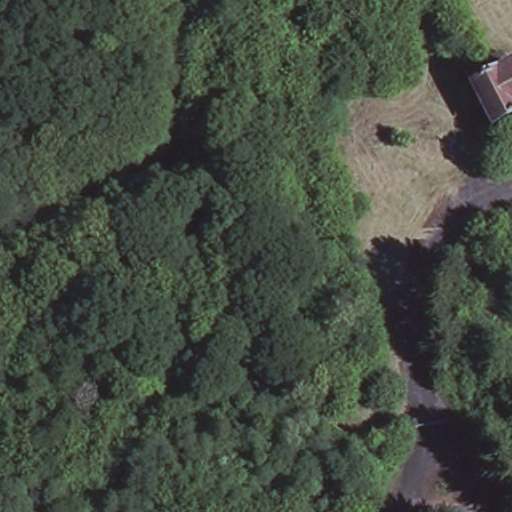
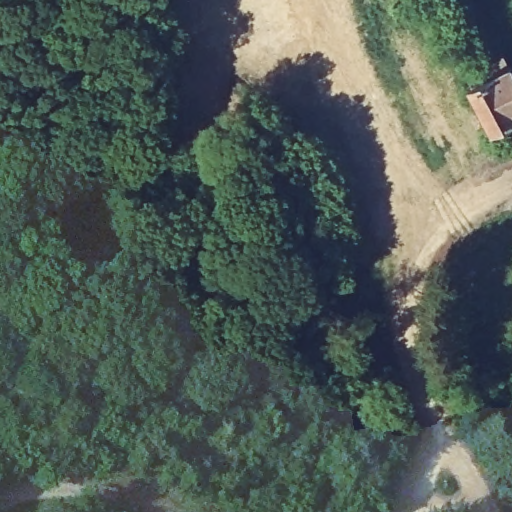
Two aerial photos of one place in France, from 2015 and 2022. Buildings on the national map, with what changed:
unchanged [(477,99),(465,82),(512,54),(512,117),(494,125),(477,99)]

